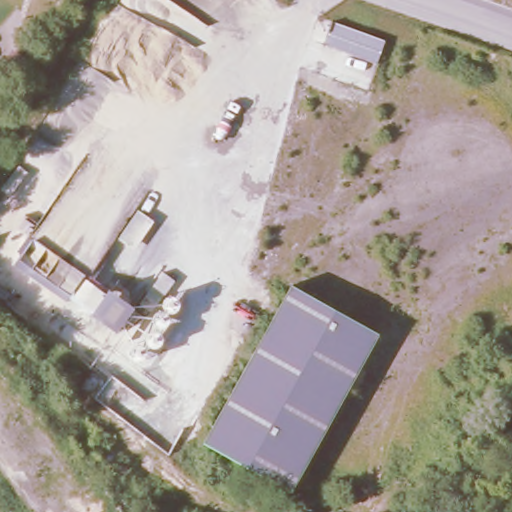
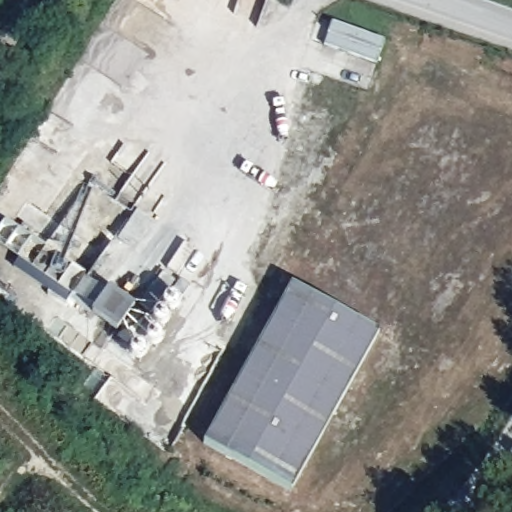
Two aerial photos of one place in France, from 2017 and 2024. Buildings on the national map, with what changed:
unchanged [(378,60),(327,44),(335,19),(388,36),(378,60)]
unchanged [(382,330),(293,488),(206,438),(295,281),(382,330)]

